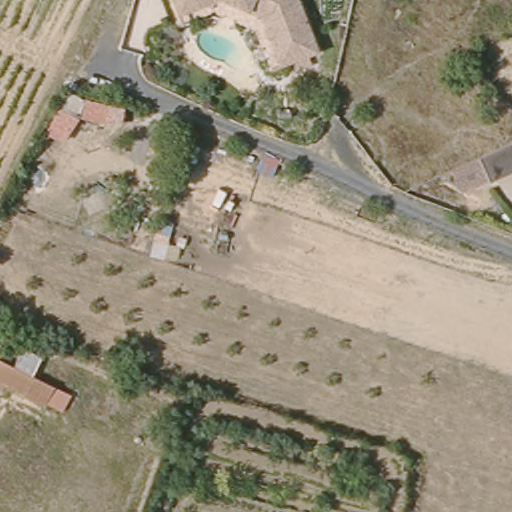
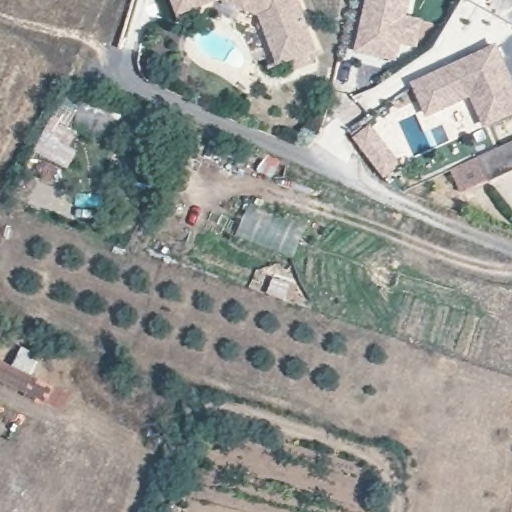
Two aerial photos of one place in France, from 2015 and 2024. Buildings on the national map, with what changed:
unchanged [(257,25),(217,7),(184,17),(177,0),(302,0),(319,47),(272,62),(257,25)]
new [(372,0),(412,0),(403,57),(364,51),(372,0)]
new [(428,118),(412,84),(499,45),(512,76),(512,117),(486,130),(472,99),(428,118)]
unchanged [(76,115),(68,132),(55,129),(61,108),(76,115)]
unchanged [(456,165),(512,140),(512,166),(464,186),(456,165)]
unchanged [(41,376),(32,395),(0,384),(0,359),(41,376)]

